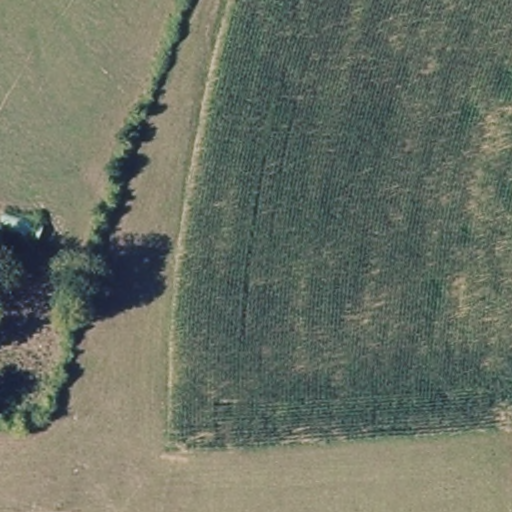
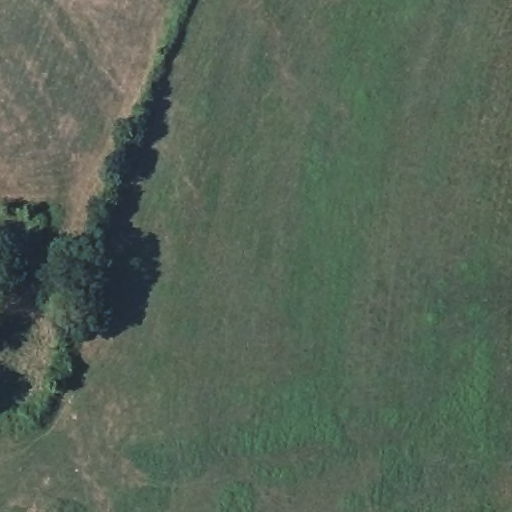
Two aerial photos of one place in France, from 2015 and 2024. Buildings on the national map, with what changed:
unchanged [(39,245),(0,231),(0,222),(2,215),(44,229),(39,245)]

